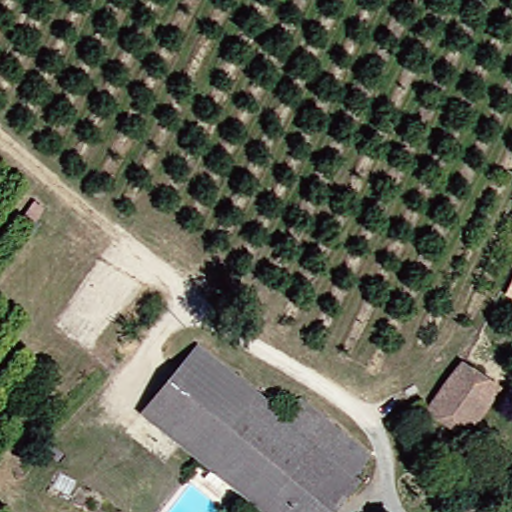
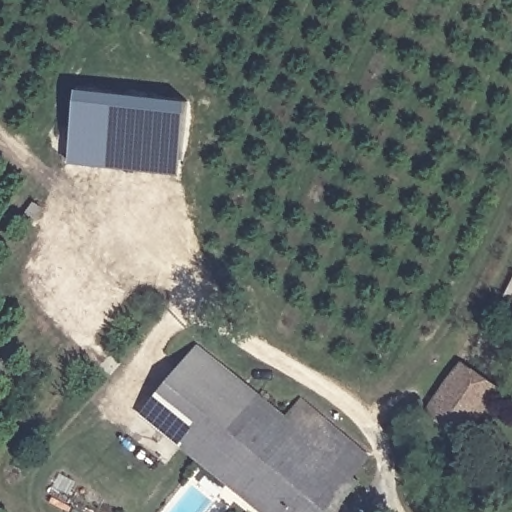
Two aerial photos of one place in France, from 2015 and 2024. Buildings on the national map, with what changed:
new [(187,100),(179,175),(69,163),(77,88),(187,100)]
unchanged [(297,512),(265,512),(136,404),(196,336),(292,421),(307,401),(355,444),(297,512)]
unchanged [(501,395),(463,441),(428,415),(464,367),(501,395)]
unchanged [(355,444),(371,460),(355,478),(360,486),(337,512),(297,512),(355,444)]

